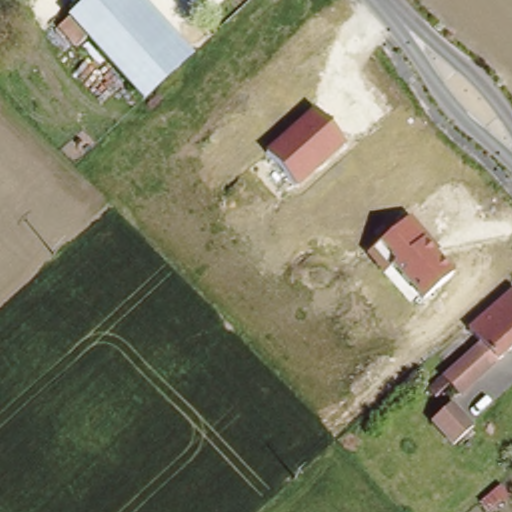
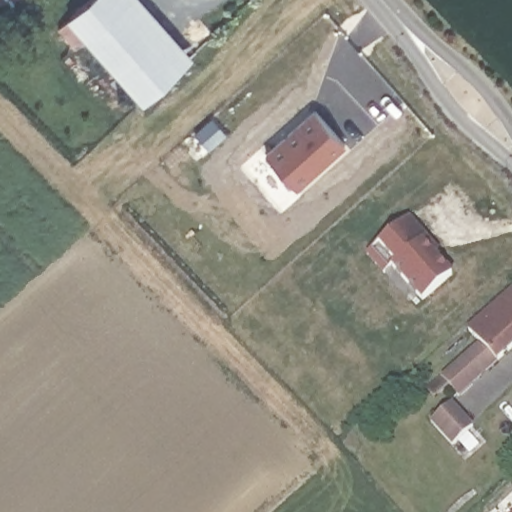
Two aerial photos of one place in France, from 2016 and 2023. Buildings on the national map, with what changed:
unchanged [(78,52),(61,34),(97,0),(120,0),(126,7),(88,42),(78,52)]
unchanged [(133,0),(138,0),(194,58),(181,70),(146,103),(128,84),(88,42),(126,7),(133,0)]
unchanged [(264,154),(314,110),(346,146),(298,189),(264,154)]
unchanged [(393,267),(382,275),(365,256),(408,217),(439,250),(437,253),(454,274),(423,300),(393,267)]
unchanged [(439,396),(432,388),(484,342),(473,328),(512,293),(512,353),(463,396),(453,385),(439,396)]
unchanged [(455,446),(434,423),(453,405),(474,429),(455,446)]

